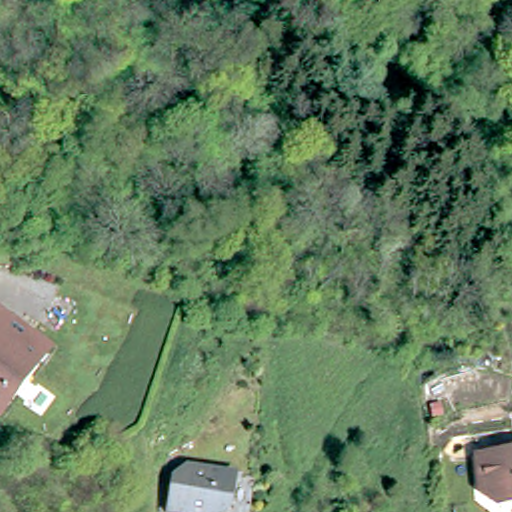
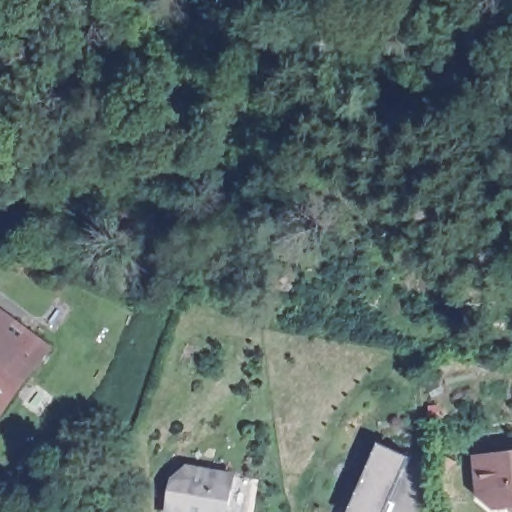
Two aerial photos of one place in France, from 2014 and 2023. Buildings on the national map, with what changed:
unchanged [(49,349),(0,415),(0,312),(49,349)]
new [(395,502),(391,512),(349,512),(379,442),(409,455),(390,502),(395,502)]
unchanged [(481,476),(476,475),(474,449),(512,446),(512,493),(493,494),(481,476)]
unchanged [(179,466),(228,471),(224,503),(218,512),(166,512),(168,478),(179,478),(179,466)]

